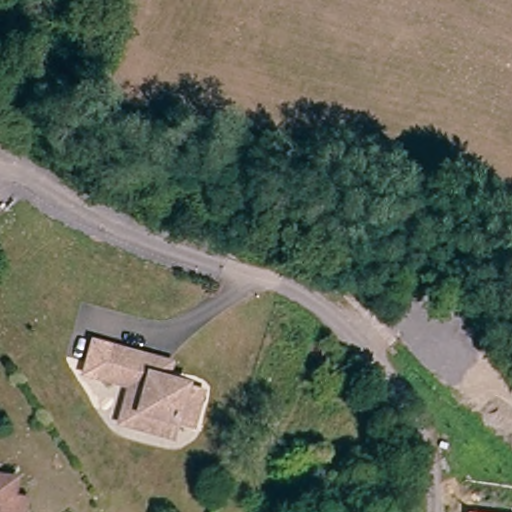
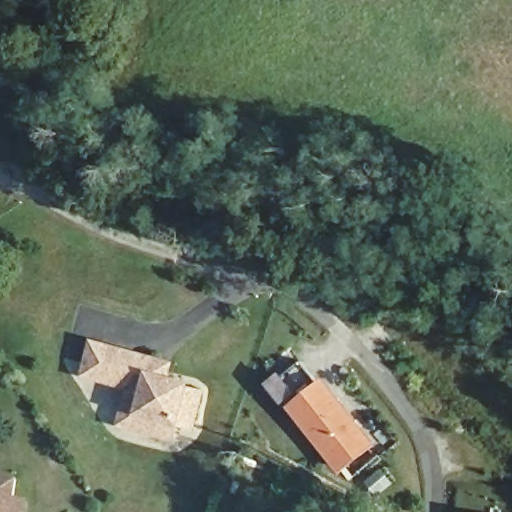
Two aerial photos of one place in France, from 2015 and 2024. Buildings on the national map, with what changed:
unchanged [(123,408),(130,387),(99,377),(82,372),(90,341),(109,348),(122,352),(160,364),(156,373),(160,380),(186,388),(185,391),(200,396),(190,429),(175,425),(172,435),(165,438),(152,434),(134,428),(139,413),(123,408)]
new [(339,476),(288,408),(270,386),(303,362),(320,383),(326,378),(379,446),(339,476)]
unchanged [(1,502),(13,505),(11,512),(0,512),(0,484),(5,485),(1,502)]
unchanged [(325,497),(320,512),(307,512),(314,493),(325,497)]

